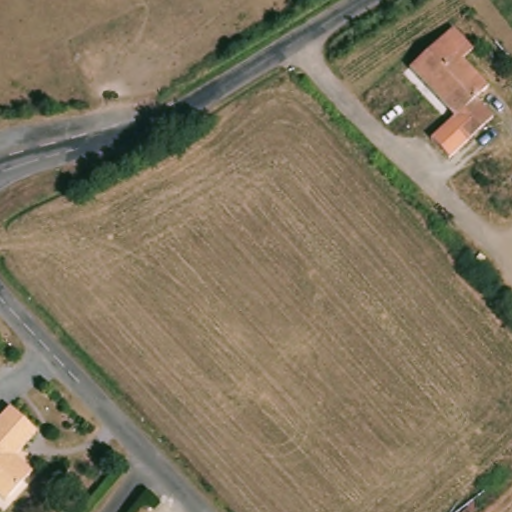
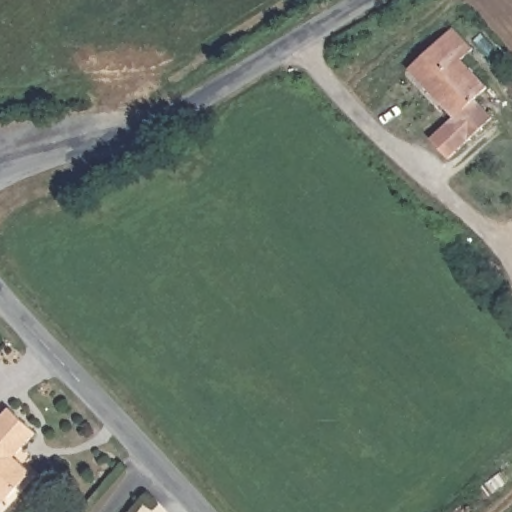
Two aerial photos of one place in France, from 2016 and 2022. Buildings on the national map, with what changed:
unchanged [(475,47),(465,59),(492,87),(481,98),(497,117),(472,141),(452,122),(457,117),(412,70),(453,25),(475,47)]
unchanged [(39,428),(20,451),(17,448),(15,451),(16,457),(22,457),(38,469),(11,500),(0,491),(0,419),(12,406),(39,428)]

